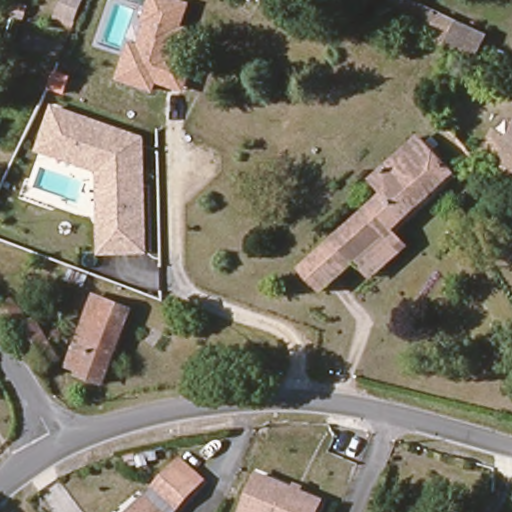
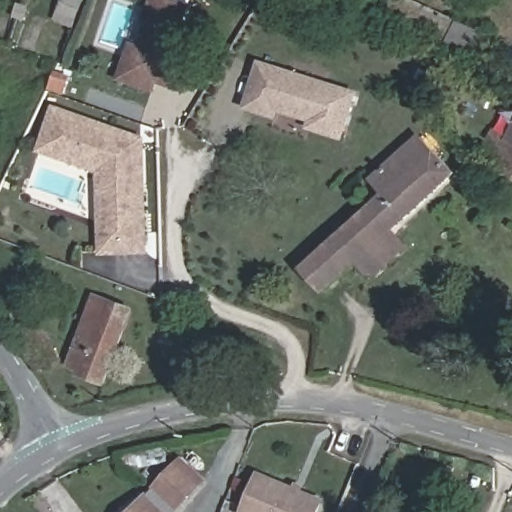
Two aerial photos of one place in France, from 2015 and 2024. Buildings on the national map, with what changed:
unchanged [(189,30),(178,61),(195,65),(186,95),(157,86),(155,93),(116,82),(128,45),(140,48),(147,25),(142,22),(149,0),(180,0),(191,4),(183,28),(189,30)]
unchanged [(454,52),(441,48),(382,22),(391,0),(410,0),(450,20),(455,21),(484,32),(472,61),(454,52)]
new [(310,121),(280,112),(278,120),(245,110),(258,60),(360,91),(346,140),(308,129),(310,121)]
unchanged [(145,138),(149,253),(101,255),(96,173),(39,155),(55,106),(145,138)]
unchanged [(419,141),(424,147),(447,127),(472,160),(392,235),(359,265),(325,298),(303,274),(384,203),(370,185),(419,141)]
unchanged [(478,164),(498,130),(511,136),(501,155),(512,161),(512,182),(478,164)]
unchanged [(501,155),(511,136),(512,137),(512,161),(501,155)]
unchanged [(511,136),(512,136),(512,137),(511,136)]
unchanged [(392,235),(409,253),(375,283),(359,265),(392,235)]
unchanged [(104,388),(79,380),(80,375),(69,370),(94,296),(131,311),(104,388)]
unchanged [(37,319),(61,362),(39,376),(17,336),(0,314),(0,308),(12,299),(30,323),(37,319)]
unchanged [(199,487),(180,507),(159,485),(178,465),(199,487)]
unchanged [(319,512),(245,512),(260,477),(323,503),(319,512)]
unchanged [(148,496),(164,512),(133,512),(148,496)]

